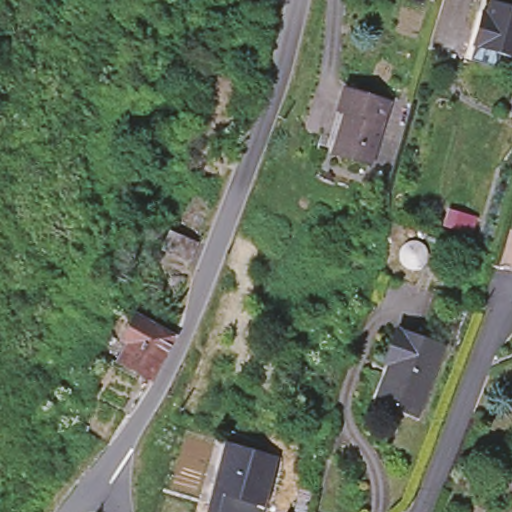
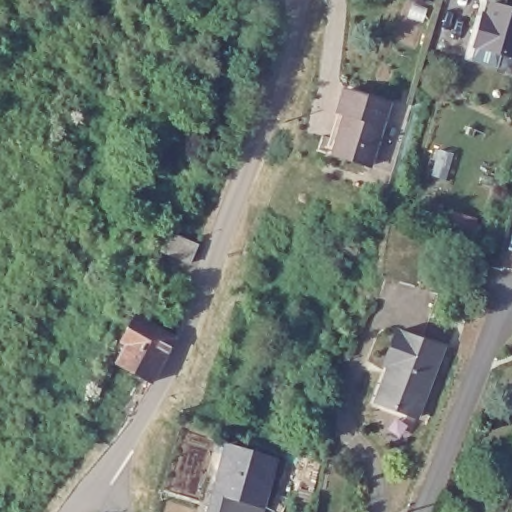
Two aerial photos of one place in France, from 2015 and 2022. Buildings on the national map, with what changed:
unchanged [(494,47),(492,57),(462,47),(465,38),(469,38),(475,21),(471,19),(475,6),(485,9),(487,0),(504,0),(512,3),(512,52),(494,47)]
unchanged [(369,165),(332,154),(339,127),(345,113),(337,110),(345,89),(353,92),(387,103),(369,165)]
unchanged [(190,265),(164,252),(172,234),(199,247),(190,265)]
unchanged [(112,358),(123,341),(118,337),(132,312),(171,334),(149,381),(112,358)]
unchanged [(372,399),(386,365),(380,361),(392,328),(439,345),(410,415),(372,399)]
unchanged [(227,443),(277,457),(264,504),(262,512),(208,512),(227,443)]

